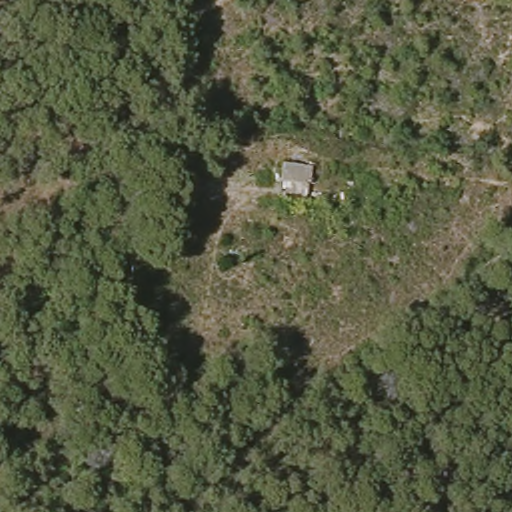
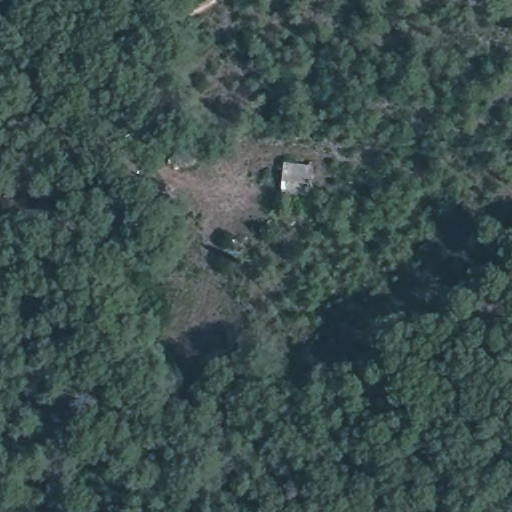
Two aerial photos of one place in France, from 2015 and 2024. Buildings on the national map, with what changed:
unchanged [(288,162),(314,164),(313,183),(286,180),(288,162)]

